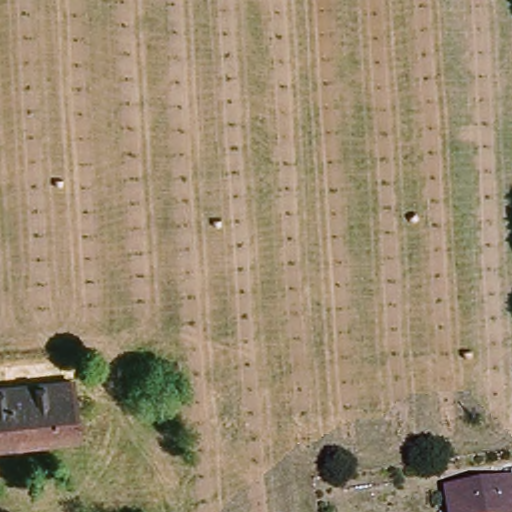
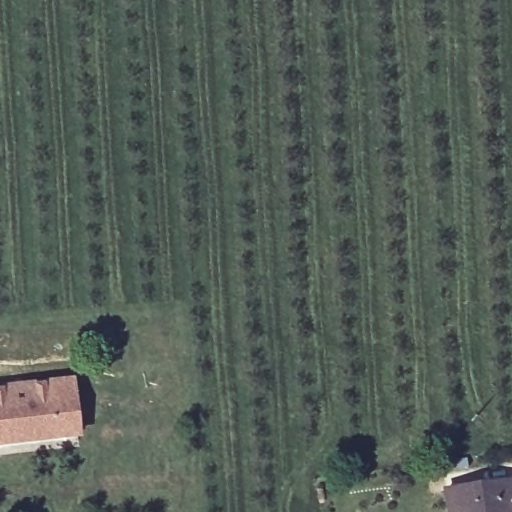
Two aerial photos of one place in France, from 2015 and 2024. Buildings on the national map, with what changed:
unchanged [(82,442),(0,452),(0,393),(75,384),(82,442)]
unchanged [(512,512),(448,512),(445,491),(512,483),(512,512)]

